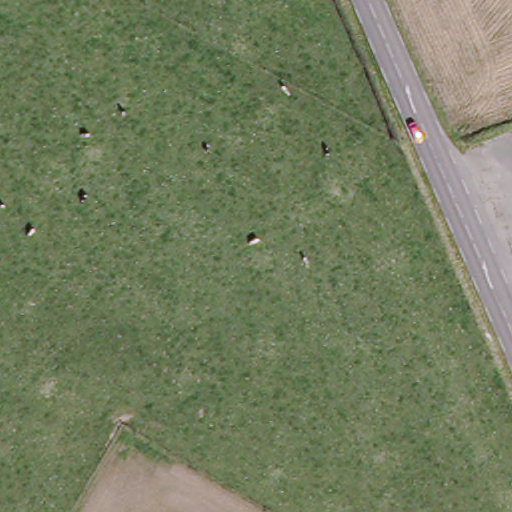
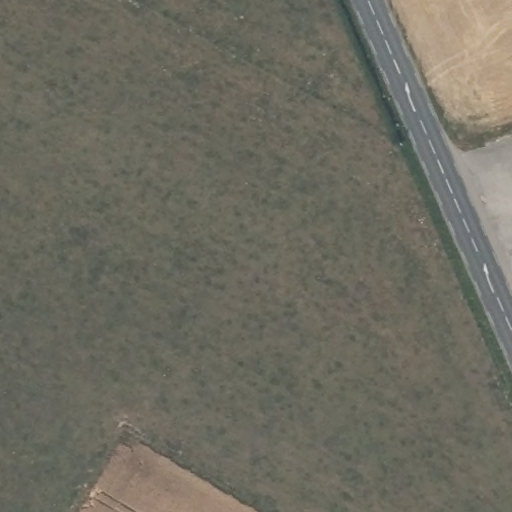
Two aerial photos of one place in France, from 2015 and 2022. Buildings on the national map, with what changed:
[]

